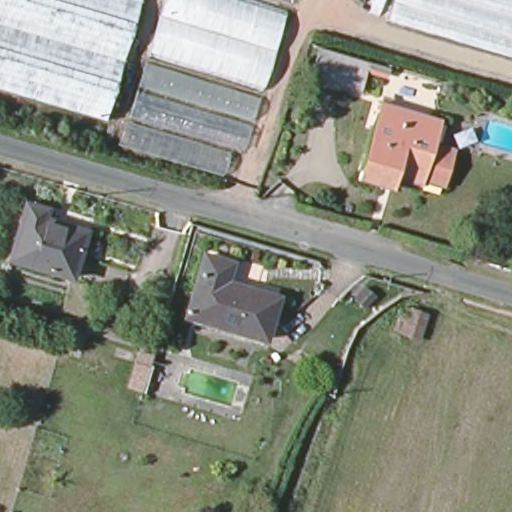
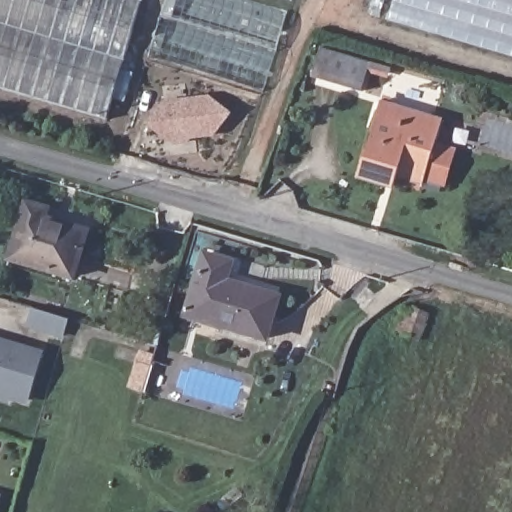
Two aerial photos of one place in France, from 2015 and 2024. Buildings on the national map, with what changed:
unchanged [(0,90),(0,0),(138,0),(102,120),(0,90)]
unchanged [(289,1),(265,80),(154,46),(165,0),(286,0),(289,1)]
unchanged [(512,63),(385,25),(392,0),(512,0),(512,63)]
unchanged [(372,81),(366,79),(323,67),(332,39),(373,52),(382,54),(372,81)]
new [(232,113),(215,137),(172,145),(145,124),(164,100),(210,95),(232,113)]
unchanged [(393,190),(358,180),(360,175),(373,131),(382,103),(387,105),(405,110),(422,115),(437,120),(444,122),(437,144),(455,149),(445,185),(426,179),(423,187),(397,180),(393,190)]
unchanged [(74,278),(10,259),(26,203),(47,210),(46,219),(88,232),(74,278)]
unchanged [(184,315),(201,255),(227,263),(222,281),(274,297),(262,339),(184,315)]
unchanged [(427,315),(418,339),(392,330),(405,306),(427,315)]
new [(44,351),(28,406),(11,402),(10,405),(10,406),(0,403),(0,338),(44,351)]
unchanged [(150,367),(153,355),(164,359),(161,370),(150,367)]
new [(1,496),(0,498),(0,496),(1,496)]

